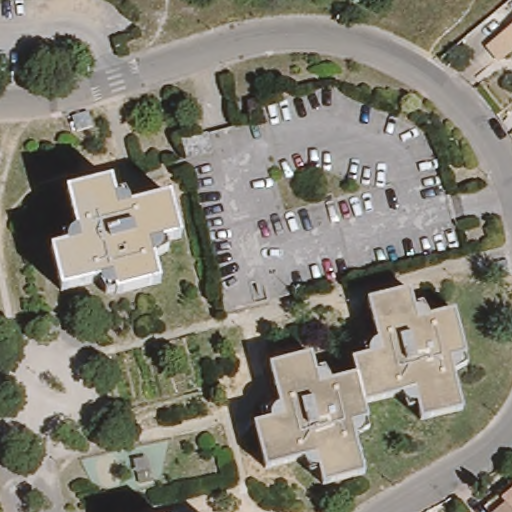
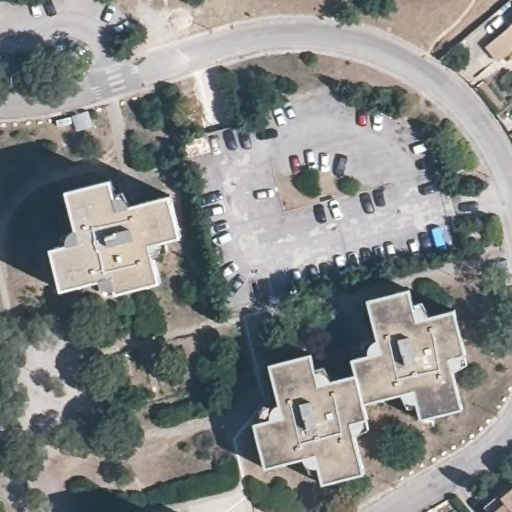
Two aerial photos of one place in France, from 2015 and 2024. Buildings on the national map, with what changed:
unchanged [(507,54),(494,40),(512,23),(512,49),(507,54)]
unchanged [(212,152),(187,159),(182,140),(207,133),(212,152)]
unchanged [(166,282),(121,294),(118,277),(67,291),(56,249),(86,242),(72,191),(117,180),(124,208),(176,195),(186,237),(156,245),(166,282)]
unchanged [(359,359),(386,352),(373,300),(414,290),(422,320),(436,316),(460,310),(471,355),(455,359),(468,409),(426,420),(419,391),(369,404),(363,374),(359,359)]
unchanged [(369,404),(373,419),(356,424),(360,437),(370,474),(328,484),(321,455),(270,468),(259,424),(288,415),(274,365),(316,354),(324,384),(363,374),(369,404)]
unchanged [(500,499),(497,495),(512,482),(512,512),(485,512),(500,499)]

